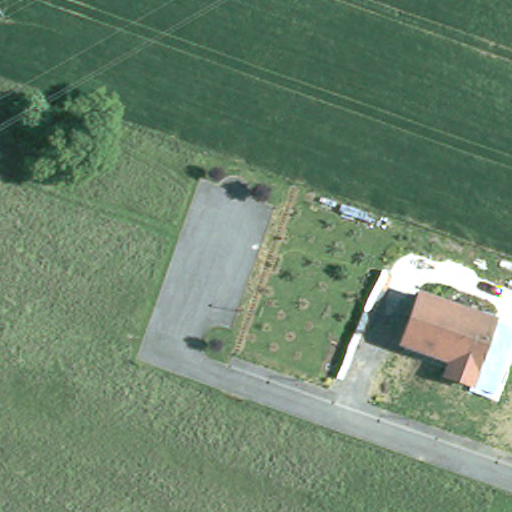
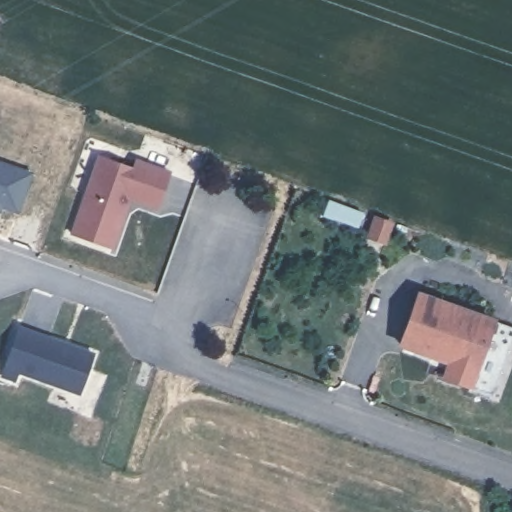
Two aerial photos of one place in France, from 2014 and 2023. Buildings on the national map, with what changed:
new [(156,209),(130,202),(113,248),(70,235),(96,153),(132,165),(135,157),(170,169),(156,209)]
new [(30,173),(16,211),(0,206),(0,162),(30,173)]
unchanged [(498,318),(473,392),(442,384),(450,363),(401,344),(418,292),(498,318)]
new [(95,352),(80,395),(18,374),(15,383),(0,379),(0,375),(17,324),(95,352)]

